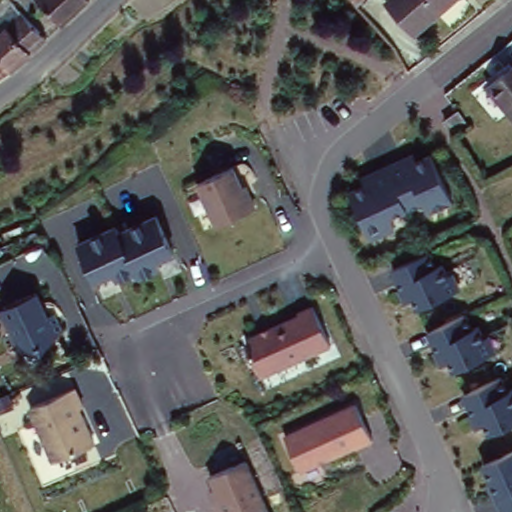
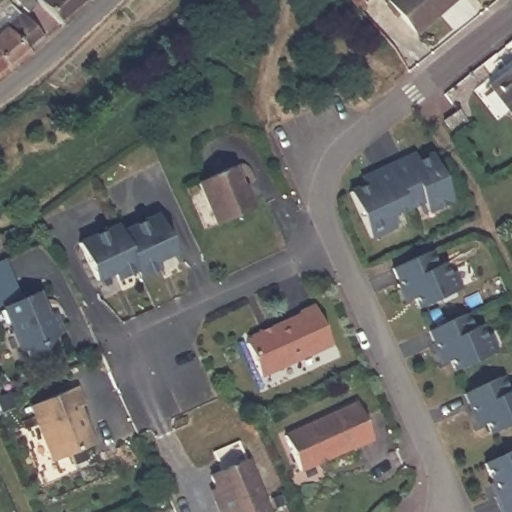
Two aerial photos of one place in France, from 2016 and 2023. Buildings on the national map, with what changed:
unchanged [(41,0),(90,0),(64,25),(41,0)]
unchanged [(352,0),(363,0),(356,6),(352,0)]
unchanged [(395,0),(452,0),(417,28),(395,0)]
unchanged [(49,40),(16,72),(14,70),(0,80),(0,36),(24,14),(49,40)]
unchanged [(512,64),(512,117),(487,82),(512,64)]
unchanged [(452,104),(460,116),(447,126),(439,115),(452,104)]
unchanged [(364,183),(361,175),(417,150),(421,158),(435,151),(455,201),(431,213),(425,202),(396,214),(401,226),(375,240),(352,189),(364,183)]
unchanged [(191,183),(232,165),(252,205),(214,227),(191,183)]
unchanged [(172,252),(152,259),(156,273),(141,279),(131,266),(114,275),(90,284),(76,242),(113,226),(120,229),(155,214),(172,252)]
unchanged [(433,248),(440,261),(447,259),(452,268),(457,265),(466,286),(422,309),(417,299),(408,302),(393,266),(433,248)]
unchanged [(7,303),(41,288),(51,311),(60,307),(69,327),(62,329),(48,347),(26,346),(12,314),(2,319),(0,315),(0,308),(7,304),(7,303)]
unchanged [(331,342),(258,378),(239,339),(306,307),(331,342)]
unchanged [(466,310),(472,325),(485,320),(497,347),(452,368),(447,359),(442,361),(428,328),(466,310)]
unchanged [(505,374),(512,388),(512,422),(492,433),(486,422),(481,424),(467,393),(505,374)]
unchanged [(82,402),(76,407),(93,441),(49,463),(25,404),(73,384),(82,402)]
unchanged [(360,399),(377,436),(361,443),(360,442),(306,466),(290,431),(360,399)]
unchanged [(488,481),(492,479),(485,461),(512,450),(512,512),(503,512),(488,481)]
unchanged [(270,512),(220,512),(203,474),(244,458),(270,512)]

